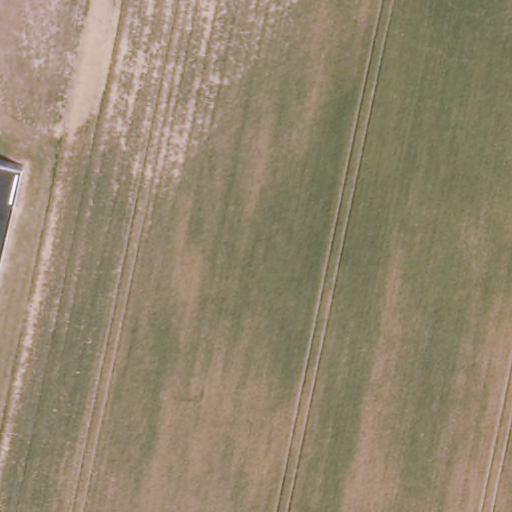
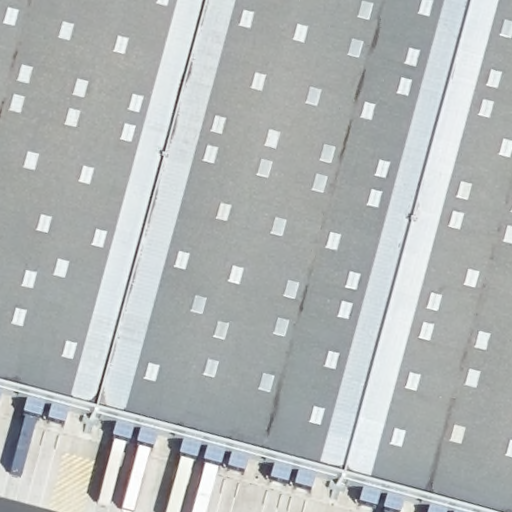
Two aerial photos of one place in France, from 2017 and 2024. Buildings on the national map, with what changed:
new [(512,512),(418,512),(0,399),(0,0),(512,0),(512,512)]
demolished [(18,166),(0,250),(0,162),(18,166)]

